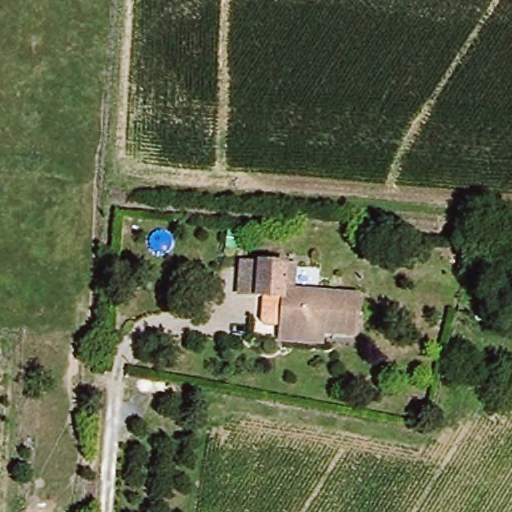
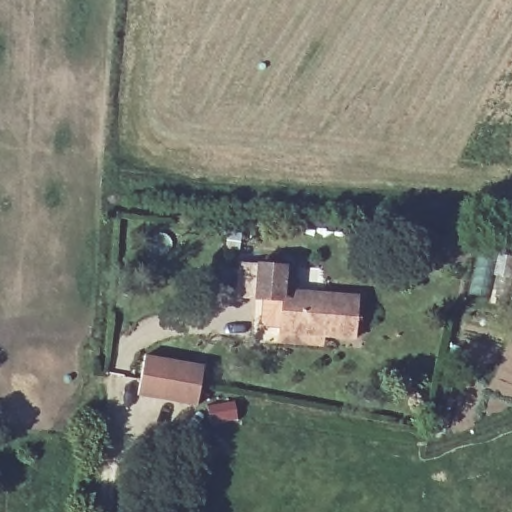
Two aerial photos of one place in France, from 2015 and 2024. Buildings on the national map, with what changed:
unchanged [(276,344),(277,334),(279,304),(255,301),(238,300),(242,264),(258,266),(292,268),(291,294),(357,300),(355,341),(324,338),(323,348),(276,344)]
new [(145,355),(202,366),(196,406),(137,396),(145,355)]

